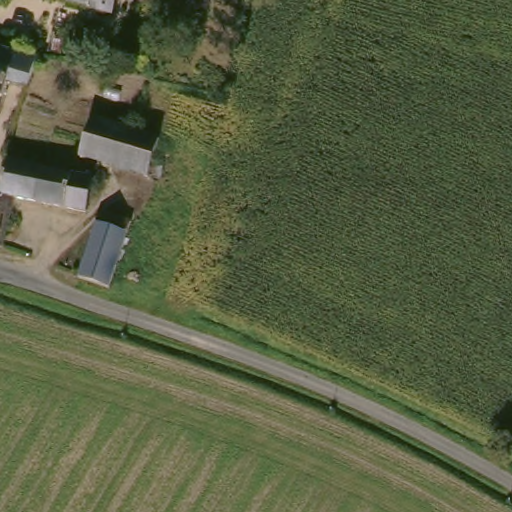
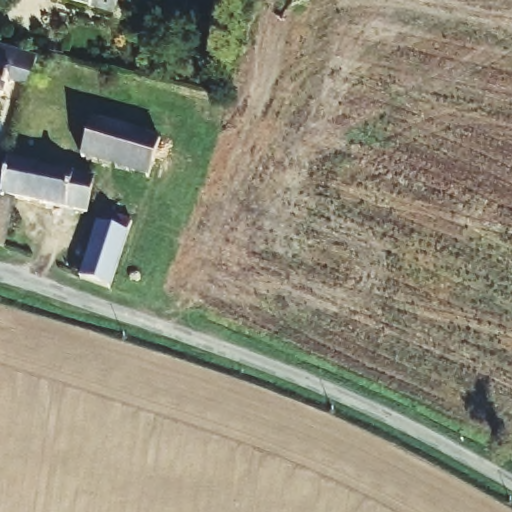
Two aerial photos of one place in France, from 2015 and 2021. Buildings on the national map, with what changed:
unchanged [(115,14),(61,0),(118,0),(115,14)]
unchanged [(33,53),(26,82),(25,84),(7,79),(3,94),(0,93),(0,48),(14,50),(33,53)]
unchanged [(79,157),(87,119),(158,139),(147,177),(79,157)]
unchanged [(5,161),(0,160),(0,150),(7,152),(5,161)]
unchanged [(57,172),(92,179),(86,212),(15,197),(4,245),(0,244),(0,183),(5,161),(57,172)]
unchanged [(105,292),(75,282),(92,230),(97,232),(102,218),(126,226),(105,292)]

